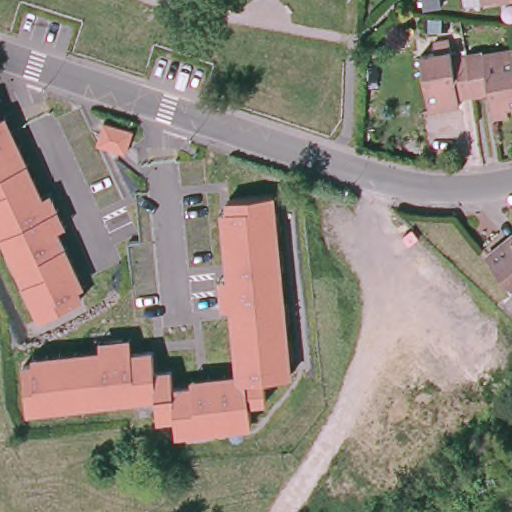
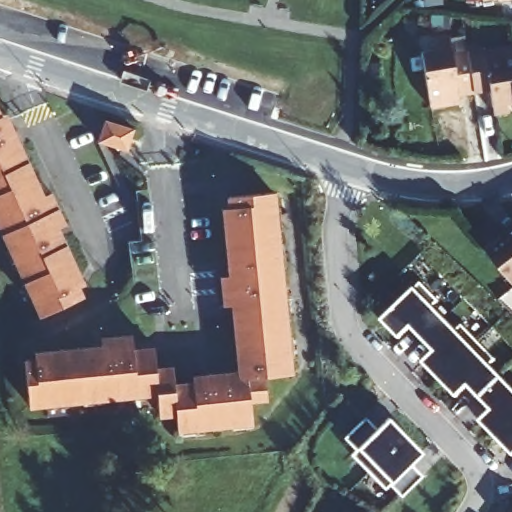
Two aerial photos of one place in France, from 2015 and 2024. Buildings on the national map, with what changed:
unchanged [(458,89),(459,95),(425,101),(417,45),(433,42),(432,31),(447,29),(449,44),(464,42),(471,87),(458,89)]
unchanged [(479,40),(480,45),(510,40),(512,48),(512,96),(504,97),(505,105),(489,107),(484,84),(471,87),(464,42),(479,40)]
unchanged [(103,113),(132,122),(125,144),(97,135),(103,113)]
unchanged [(5,114),(42,195),(52,192),(67,228),(60,231),(85,287),(80,288),(84,297),(39,319),(0,234),(0,116),(5,114)]
unchanged [(275,194),(292,375),(264,380),(265,403),(249,403),(250,427),(175,435),(174,416),(157,418),(155,396),(27,410),(23,361),(32,360),(32,352),(97,344),(97,337),(130,333),(132,348),(152,347),(155,367),(171,365),(174,383),(190,382),(190,376),(233,372),(230,309),(222,310),(220,276),(227,275),(221,210),(227,209),(225,197),(275,194)]
unchanged [(500,227),(512,219),(512,276),(507,280),(480,242),(500,227)]
new [(437,300),(431,305),(454,330),(460,324),(493,360),(487,366),(510,390),(512,388),(512,455),(479,421),(490,409),(467,385),(455,397),(422,362),(433,351),(410,327),(399,337),(381,319),(420,281),(437,300)]
new [(363,418),(375,430),(387,418),(420,453),(409,465),(420,477),(399,497),(387,485),(382,490),(349,455),(354,451),(342,438),(363,418)]

